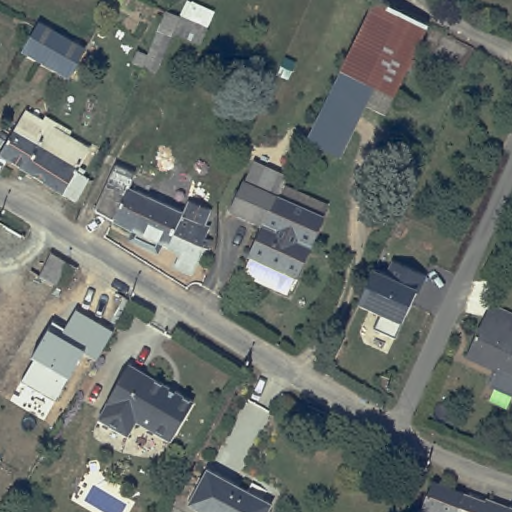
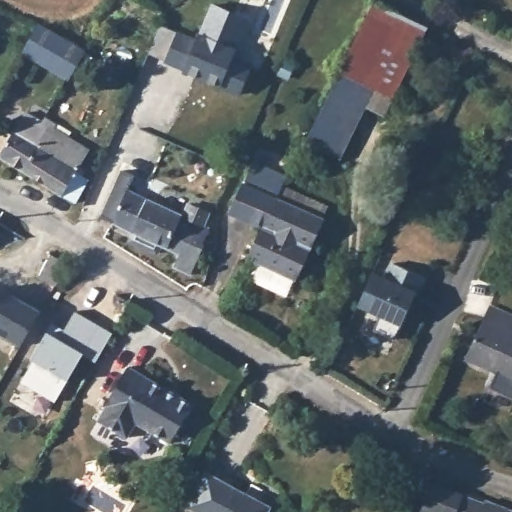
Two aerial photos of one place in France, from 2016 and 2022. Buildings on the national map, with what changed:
unchanged [(372,90),(337,159),(306,143),(375,3),(425,28),(392,100),(372,90)]
new [(248,20),(231,60),(251,68),(240,95),(185,73),(186,70),(167,63),(179,34),(198,41),(213,5),(248,20)]
demolished [(166,13),(191,24),(195,14),(210,21),(206,30),(200,48),(174,36),(156,75),(142,69),(149,55),(166,13)]
unchanged [(36,27),(82,53),(67,79),(22,53),(36,27)]
unchanged [(131,64),(137,50),(149,55),(142,69),(131,64)]
unchanged [(85,169),(90,172),(86,179),(92,183),(80,204),(29,173),(27,172),(4,156),(30,114),(46,124),(49,119),(57,124),(61,126),(59,132),(80,144),(94,152),(85,169)]
unchanged [(235,209),(259,160),(291,174),(287,183),(268,224),(235,209)]
unchanged [(115,170),(132,179),(127,192),(182,218),(188,205),(210,216),(205,227),(210,229),(205,241),(210,244),(207,251),(202,249),(191,276),(174,269),(180,255),(161,246),(157,256),(128,242),(131,233),(95,214),(115,170)]
unchanged [(268,224),(287,183),(332,204),(298,279),(291,294),(246,272),(254,257),(268,224)]
unchanged [(50,254),(67,264),(56,285),(40,277),(50,254)]
unchanged [(372,275),(386,281),(393,264),(425,279),(417,297),(415,296),(412,304),(395,341),(373,332),(380,316),(358,305),(371,279),(372,275)]
unchanged [(19,347),(0,336),(0,288),(40,309),(19,347)]
unchanged [(500,391),(508,374),(498,369),(496,372),(469,359),(493,307),(512,316),(512,396),(500,391)]
unchanged [(110,333),(96,362),(81,353),(68,379),(53,402),(21,382),(32,360),(48,329),(53,323),(65,329),(74,310),(110,333)]
unchanged [(110,408),(106,406),(130,368),(196,408),(174,446),(136,424),(127,439),(100,423),(110,408)]
unchanged [(189,508),(207,473),(270,507),(267,512),(197,512),(189,508)]
unchanged [(483,504),(485,501),(512,511),(512,512),(422,512),(420,512),(431,484),(483,504)]

